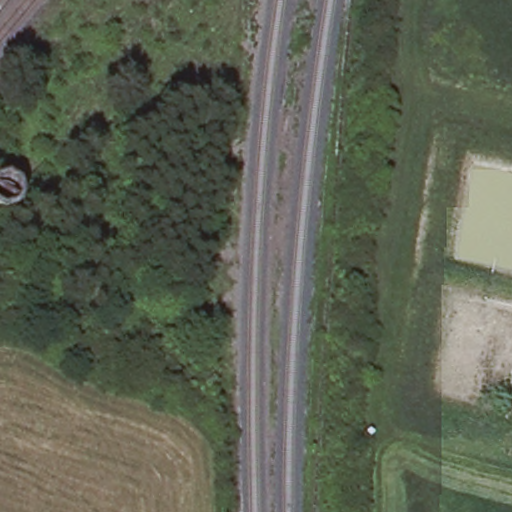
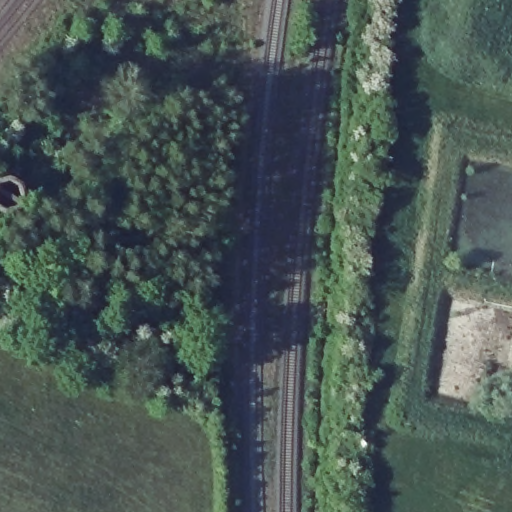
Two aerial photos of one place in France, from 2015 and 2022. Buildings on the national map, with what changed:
unchanged [(18,183),(22,197),(14,209),(4,211),(0,209),(0,179),(8,176),(18,183)]

